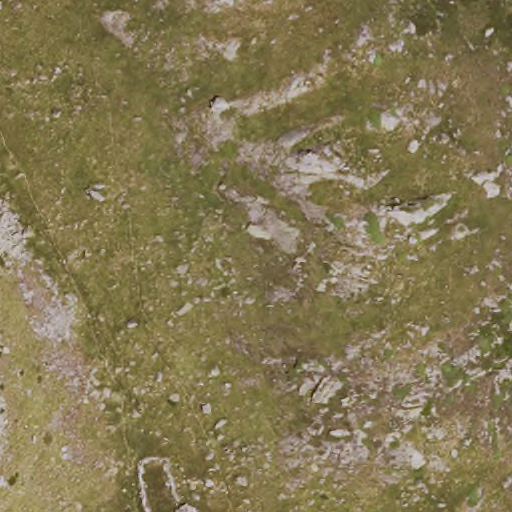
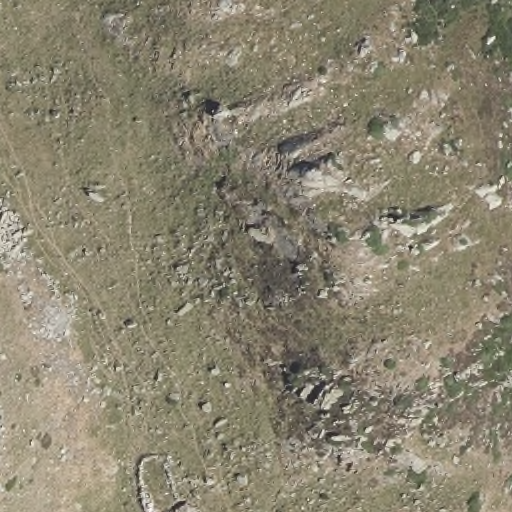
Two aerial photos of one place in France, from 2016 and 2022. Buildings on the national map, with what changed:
unchanged [(195,510),(195,512),(174,512),(174,510),(181,505),(195,510)]

